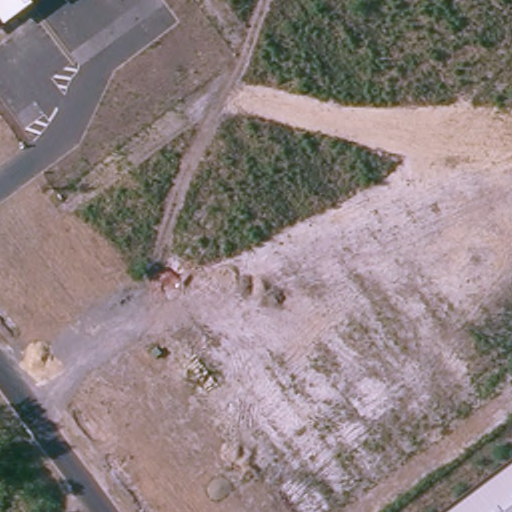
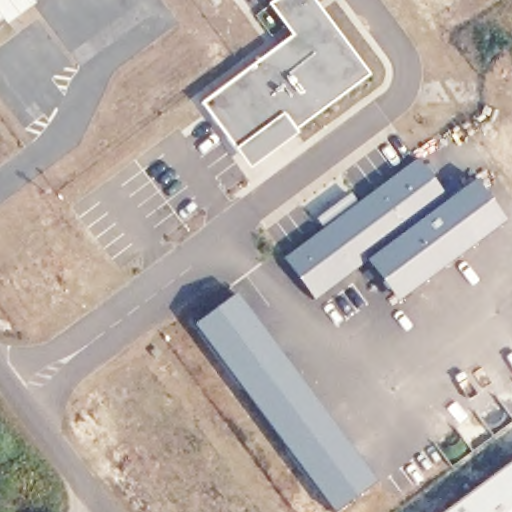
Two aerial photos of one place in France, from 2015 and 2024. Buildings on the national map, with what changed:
unchanged [(0,12),(0,0),(32,0),(16,11),(9,17),(4,9),(0,12)]
new [(369,76),(296,130),(298,132),(250,167),(202,103),(292,36),(269,5),(275,0),(314,0),(369,76)]
new [(357,204),(416,159),(448,201),(475,181),(505,221),(397,302),(368,262),(316,301),(285,257),(325,227),(317,218),(350,195),(357,204)]
new [(231,292),(368,472),(326,503),(192,322),(231,292)]
unchanged [(447,512),(512,463),(512,512),(447,512)]

